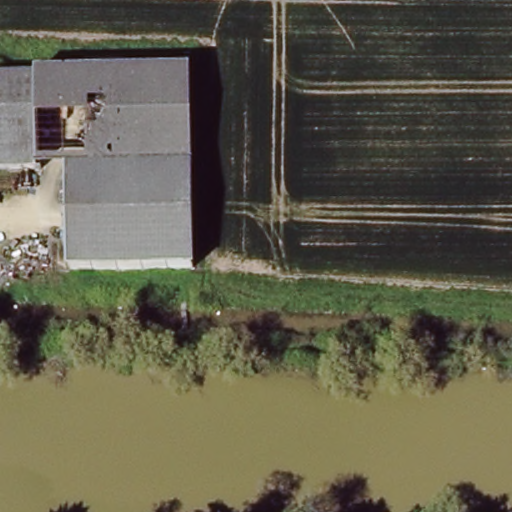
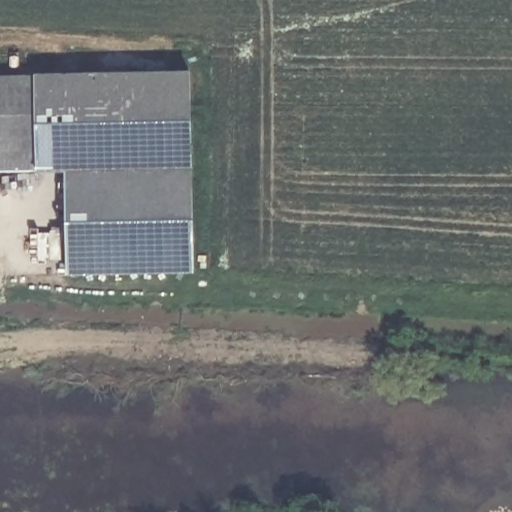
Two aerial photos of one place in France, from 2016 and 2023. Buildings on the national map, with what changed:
unchanged [(67,275),(67,167),(0,170),(0,71),(195,65),(197,274),(67,275)]

